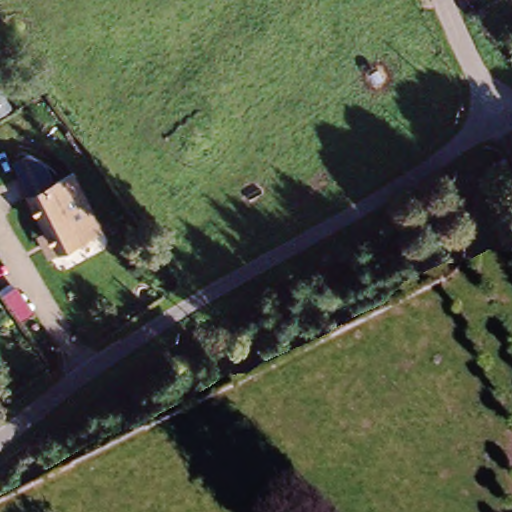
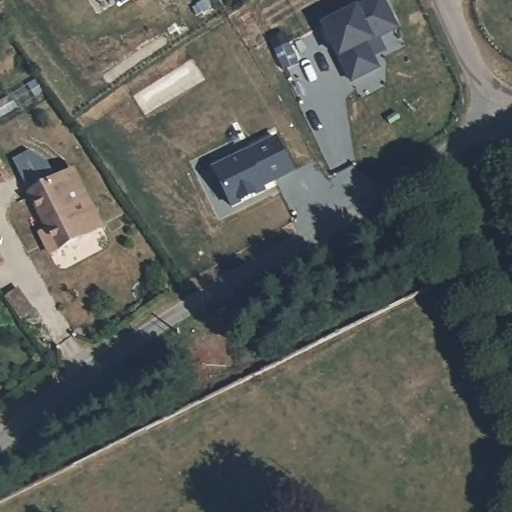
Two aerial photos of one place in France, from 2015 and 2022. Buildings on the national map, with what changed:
new [(381,0),(390,27),(361,38),(370,65),(345,75),(319,20),(359,0),(381,0)]
new [(293,172),(264,186),(266,190),(256,195),(258,199),(241,207),(240,204),(231,209),(212,168),(246,151),(277,136),(293,172)]
unchanged [(33,191),(30,182),(50,174),(53,182),(71,175),(80,180),(99,234),(75,243),(56,251),(33,191)]

